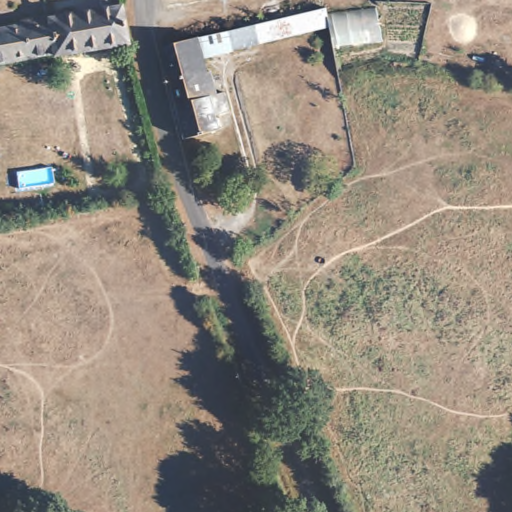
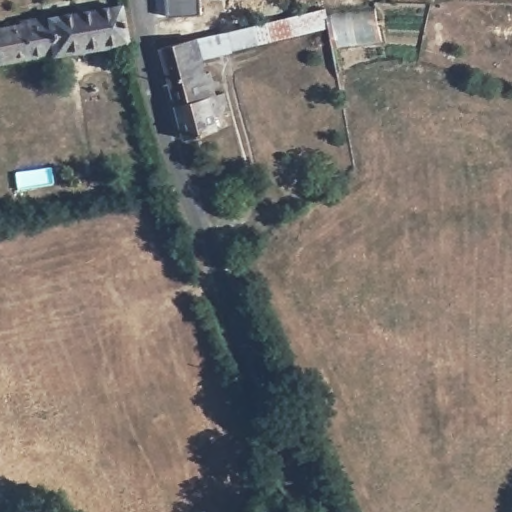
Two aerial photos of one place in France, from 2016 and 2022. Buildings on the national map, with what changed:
unchanged [(112,6),(120,42),(45,56),(0,65),(0,28),(39,20),(112,6)]
unchanged [(224,34),(320,9),(325,28),(227,53),(224,34)]
unchanged [(155,48),(187,41),(207,98),(171,106),(155,48)]
unchanged [(207,98),(216,96),(221,113),(209,117),(212,134),(180,141),(171,106),(207,98)]

